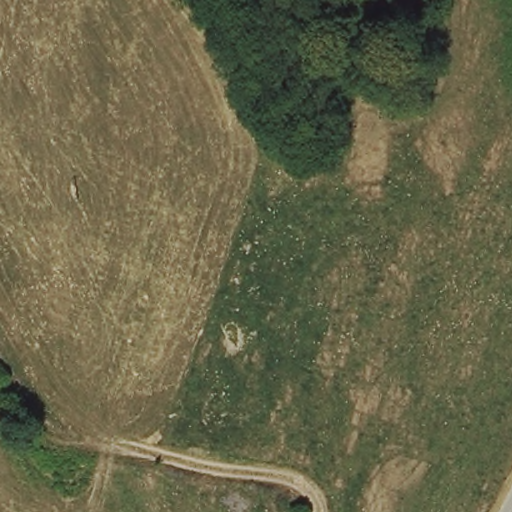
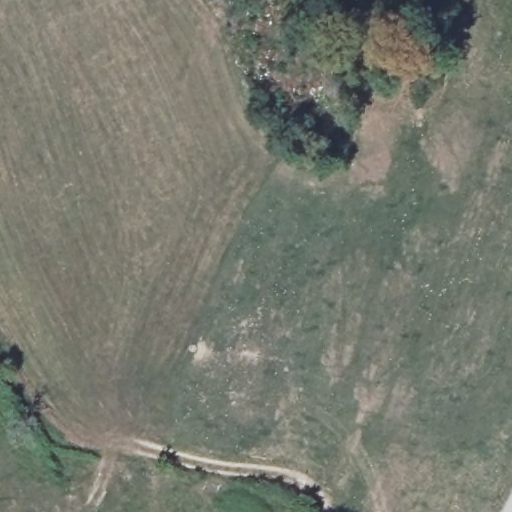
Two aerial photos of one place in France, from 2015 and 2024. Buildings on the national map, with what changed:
[]

